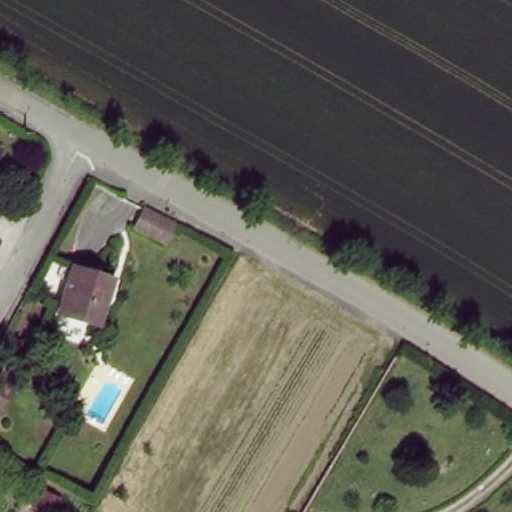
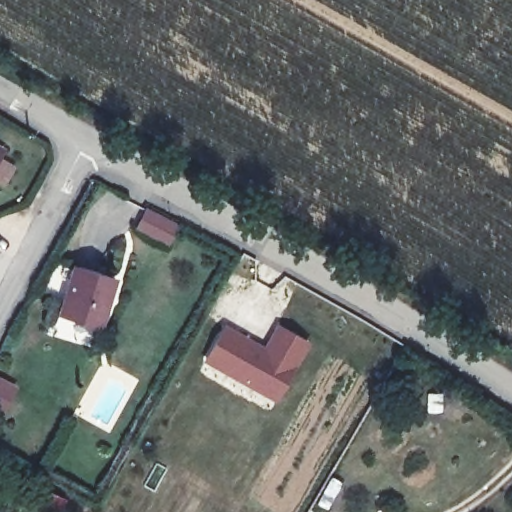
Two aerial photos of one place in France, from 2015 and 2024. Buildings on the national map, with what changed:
unchanged [(1,146),(2,147),(0,149),(0,146),(1,146)]
unchanged [(151,206),(180,222),(170,240),(139,224),(149,206),(151,206)]
unchanged [(63,310),(65,306),(79,262),(117,274),(109,299),(111,299),(105,318),(103,323),(63,310)]
new [(309,341),(274,403),(202,362),(224,323),(264,345),(276,324),(309,341)]
unchanged [(0,403),(0,375),(18,385),(12,395),(6,406),(0,403)]

